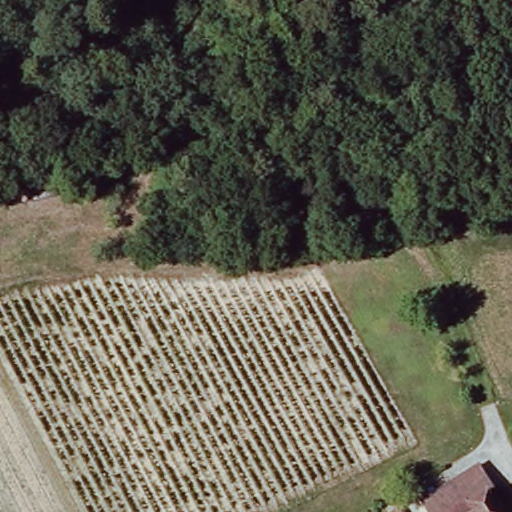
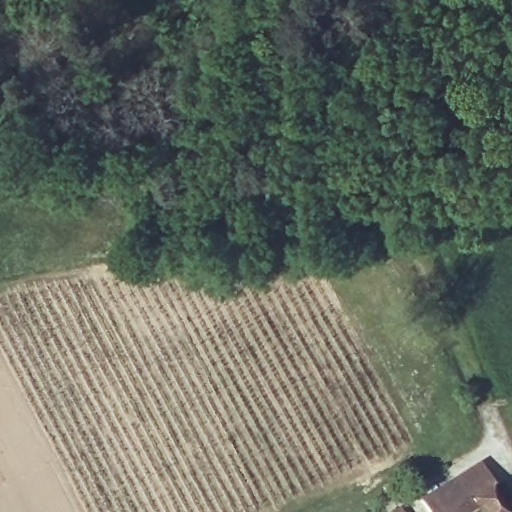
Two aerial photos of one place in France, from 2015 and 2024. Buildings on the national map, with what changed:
unchanged [(424,501),(483,467),(494,489),(489,493),(500,512),(430,512),(424,501)]

